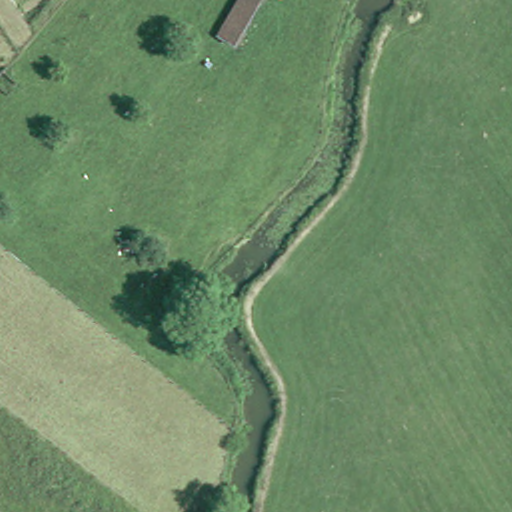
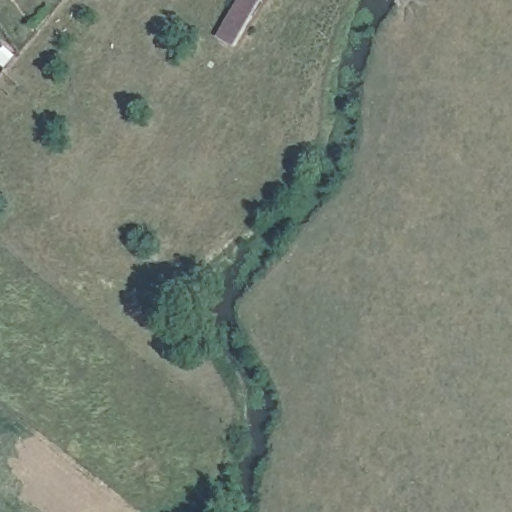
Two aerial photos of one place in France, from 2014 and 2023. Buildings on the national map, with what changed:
unchanged [(218,36),(239,0),(261,0),(235,45),(218,36)]

